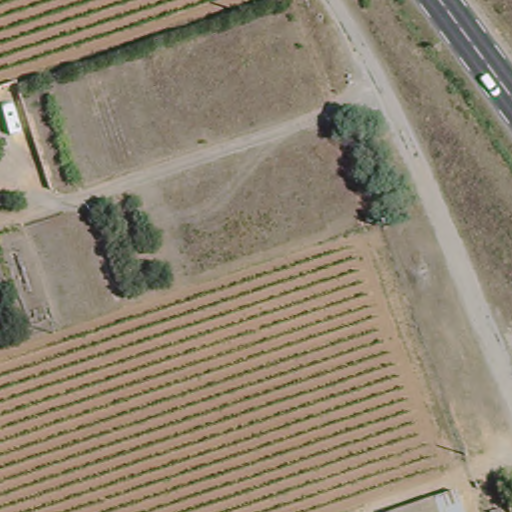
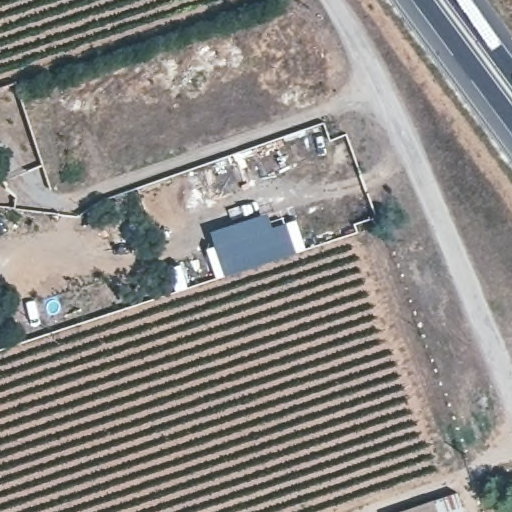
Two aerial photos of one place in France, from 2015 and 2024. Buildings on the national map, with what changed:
new [(213,244),(208,229),(268,211),(271,220),(281,216),(281,220),(296,217),(306,248),(216,278),(204,246),(213,244)]
unchanged [(458,495),(464,512),(408,512),(458,495)]

